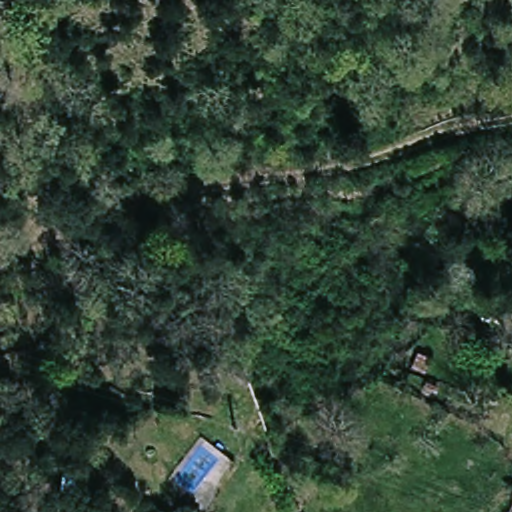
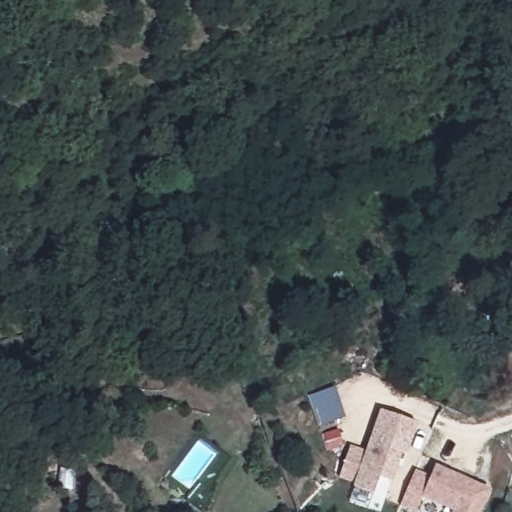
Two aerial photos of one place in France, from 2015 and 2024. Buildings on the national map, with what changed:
new [(418,424),(408,455),(404,455),(393,483),(380,478),(374,496),(354,488),(355,484),(340,478),(351,446),(366,451),(380,410),(418,424)]
new [(437,465),(493,491),(484,512),(451,512),(424,498),(418,512),(414,512),(400,506),(416,470),(432,476),(437,465)]

